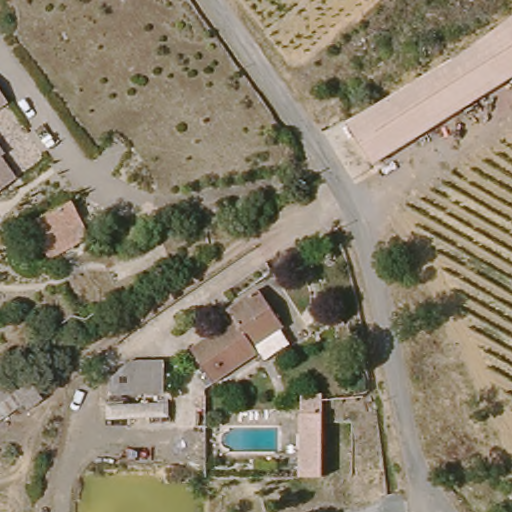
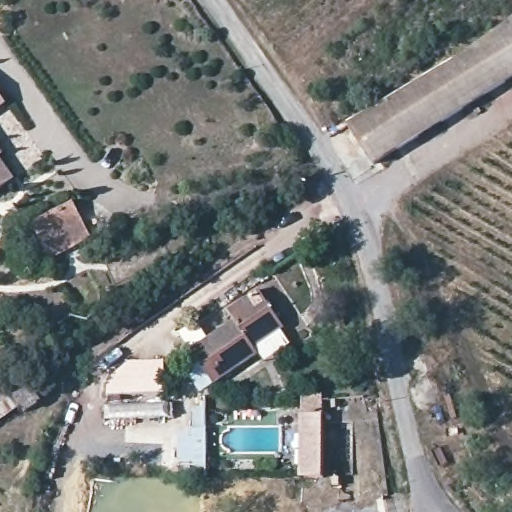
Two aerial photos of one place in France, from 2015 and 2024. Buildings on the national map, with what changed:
unchanged [(512,20),(512,77),(370,169),(345,127),(512,20)]
unchanged [(0,109),(0,107),(1,108),(0,109)]
unchanged [(0,161),(0,155),(2,159),(0,161)]
unchanged [(0,186),(0,163),(9,180),(0,186)]
unchanged [(84,229),(89,240),(47,262),(31,227),(72,206),(84,229)]
unchanged [(224,311),(257,289),(281,327),(249,346),(254,355),(208,385),(185,351),(230,322),(224,311)]
unchanged [(114,379),(135,359),(167,360),(169,373),(177,373),(177,391),(115,396),(114,379)]
unchanged [(32,376),(46,400),(30,410),(25,407),(0,426),(0,369),(14,389),(32,376)]
unchanged [(304,394),(327,394),(325,419),(327,477),(307,477),(304,394)]

